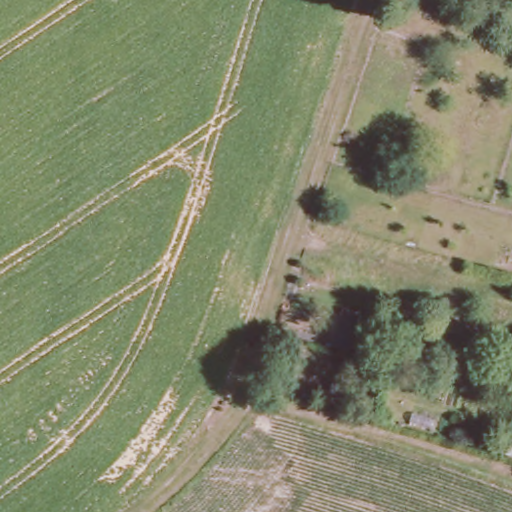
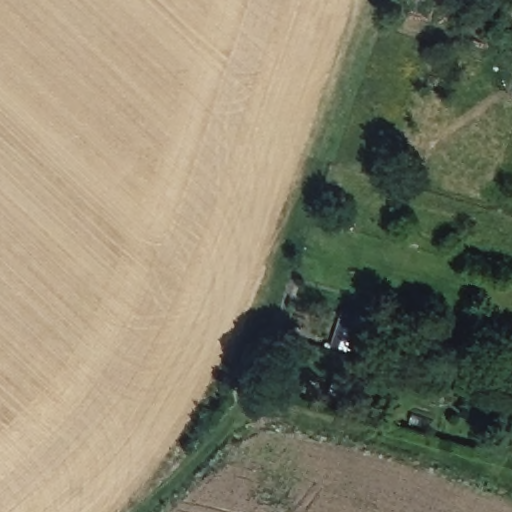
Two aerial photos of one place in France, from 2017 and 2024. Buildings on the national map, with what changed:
unchanged [(495,459),(502,434),(510,436),(512,437),(512,464),(503,461),(495,459)]

